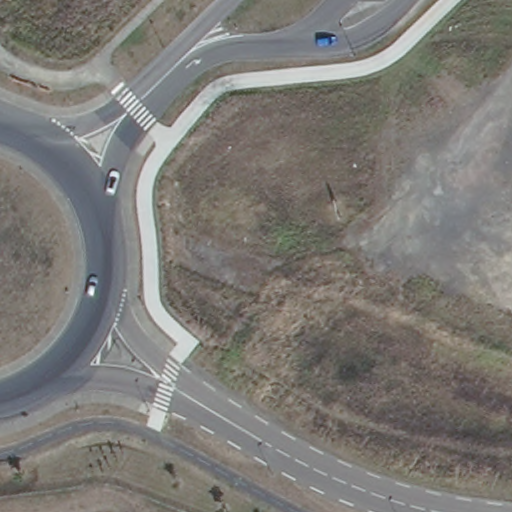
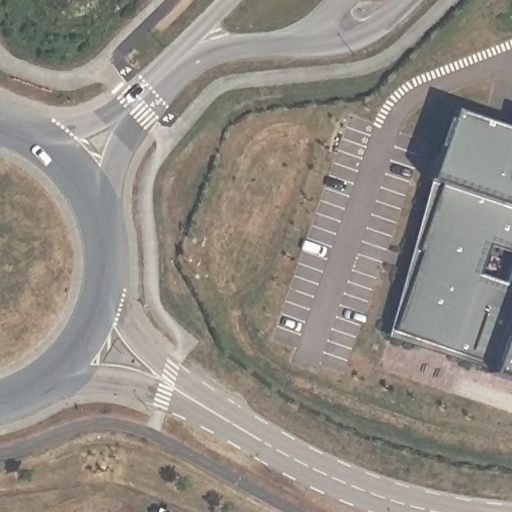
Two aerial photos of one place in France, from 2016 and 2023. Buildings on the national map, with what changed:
new [(492,366),(392,332),(420,252),(417,251),(439,184),(426,180),(450,110),(507,129),(512,113),(512,381),(489,373),(492,366)]

